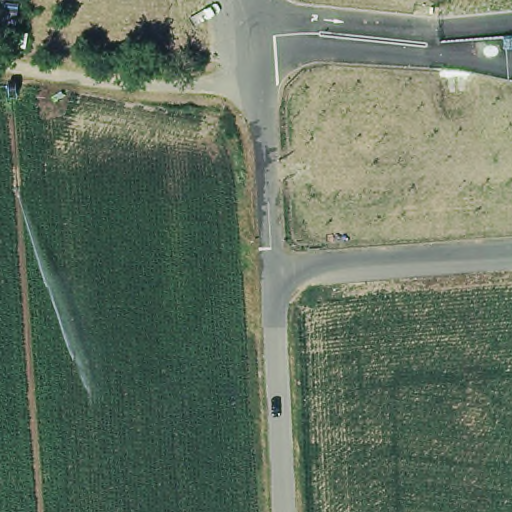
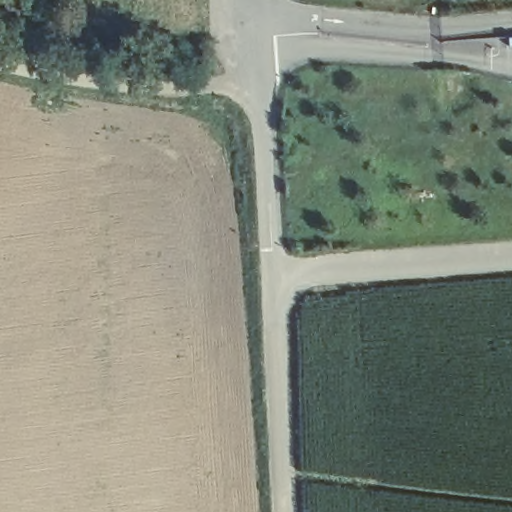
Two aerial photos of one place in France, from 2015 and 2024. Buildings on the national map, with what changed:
[]

